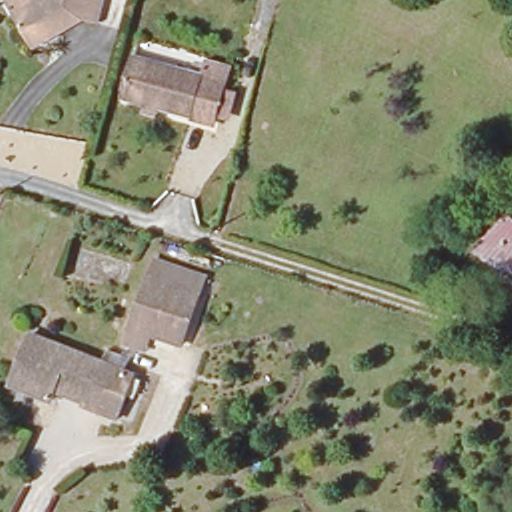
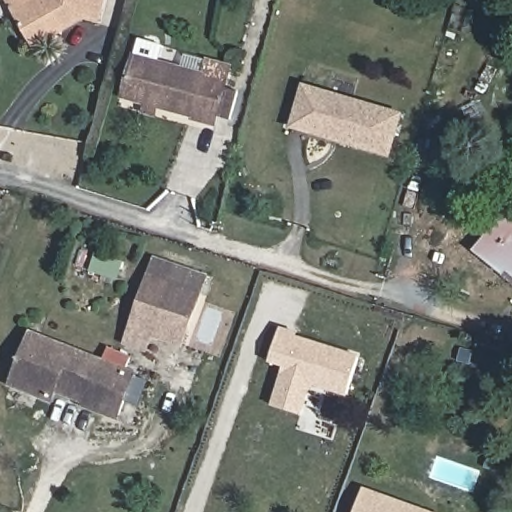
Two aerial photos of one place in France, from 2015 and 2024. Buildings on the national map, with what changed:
unchanged [(33,0),(34,2),(37,0),(110,0),(102,22),(86,18),(76,18),(36,49),(11,19),(0,4),(5,0),(33,0)]
unchanged [(224,77),(212,121),(127,94),(139,53),(224,77)]
new [(390,158),(288,129),(303,84),(404,112),(390,158)]
unchanged [(497,274),(473,250),(512,216),(512,272),(507,266),(497,274)]
demolished [(76,265),(79,250),(124,266),(120,282),(76,265)]
unchanged [(184,341),(133,324),(151,273),(202,292),(184,341)]
new [(283,368),(270,363),(280,331),(359,356),(348,392),(311,380),(299,415),(271,405),(283,368)]
unchanged [(119,416),(79,402),(81,397),(52,388),(48,399),(9,386),(29,332),(135,371),(119,416)]
new [(431,512),(356,512),(365,488),(431,512)]

